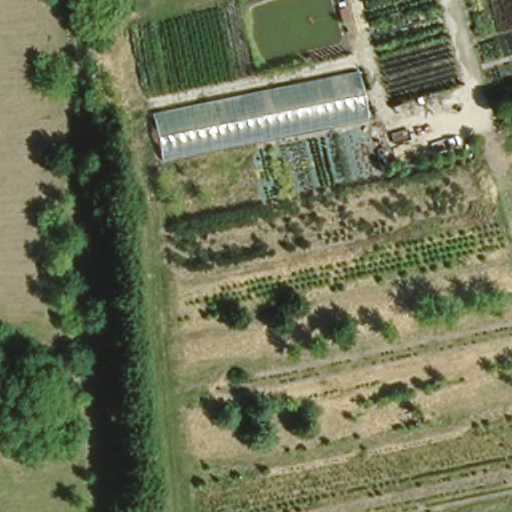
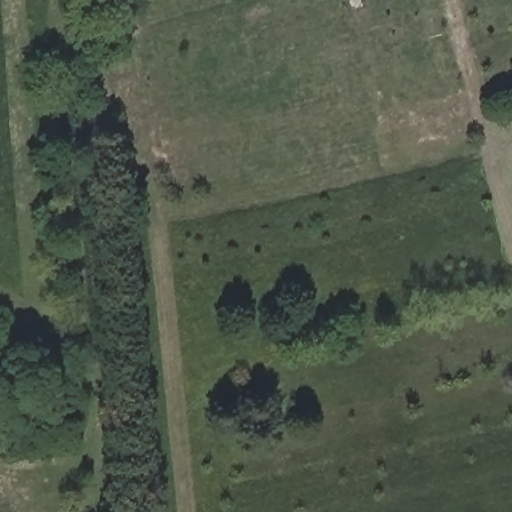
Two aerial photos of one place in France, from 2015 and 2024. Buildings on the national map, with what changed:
demolished [(367,120),(161,161),(151,112),(357,69),(367,120)]

